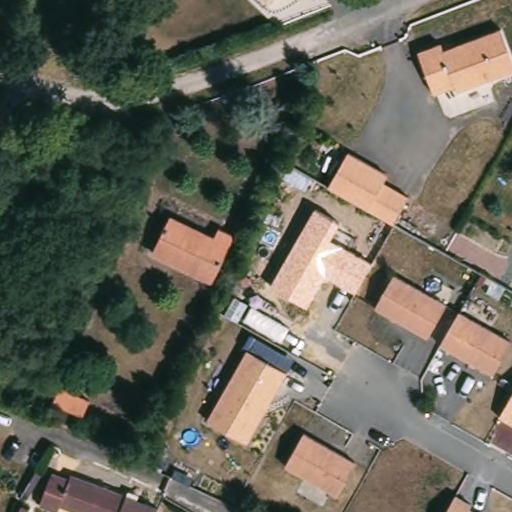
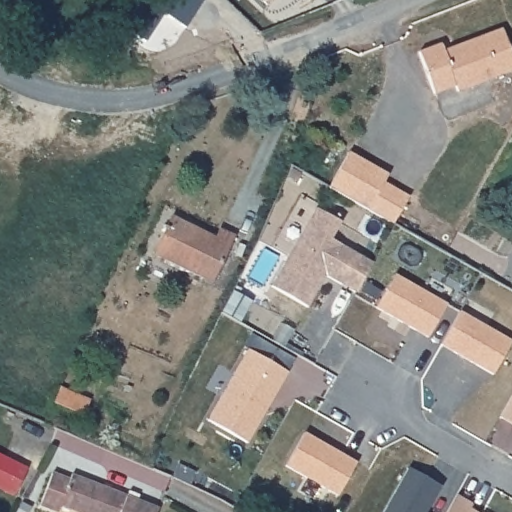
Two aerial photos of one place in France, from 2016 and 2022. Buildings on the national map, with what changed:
unchanged [(261,0),(276,0),(270,8),(261,0)]
unchanged [(457,86),(436,94),(420,53),(443,44),(445,51),(456,48),(503,30),(512,54),(512,73),(459,92),(457,86)]
unchanged [(394,225),(369,210),(330,187),(350,153),(389,175),(385,183),(410,198),(394,225)]
unchanged [(342,223),(333,238),(375,262),(356,294),(327,277),(308,308),(270,287),(315,208),(342,223)]
unchanged [(212,237),(216,228),(231,236),(210,279),(151,250),(168,215),(212,237)]
unchanged [(445,305),(425,341),(372,312),(392,276),(445,305)]
unchanged [(493,378),(438,349),(456,313),(511,342),(493,378)]
unchanged [(207,421),(246,349),(288,371),(250,441),(207,421)]
unchanged [(73,379),(102,392),(96,408),(67,395),(73,379)]
unchanged [(512,401),(512,418),(505,415),(512,401)]
unchanged [(336,500),(284,470),(303,437),(354,465),(336,500)]
unchanged [(45,471),(31,497),(25,493),(40,468),(45,471)]
new [(425,512),(384,512),(409,469),(440,487),(425,512)]
unchanged [(64,503),(61,510),(43,503),(55,470),(73,477),(74,473),(130,495),(132,489),(142,494),(140,499),(160,508),(158,512),(85,512),(64,503)]
unchanged [(455,501),(471,507),(468,511),(470,512),(447,512),(455,501)]
unchanged [(33,507),(30,512),(21,512),(26,504),(33,507)]

